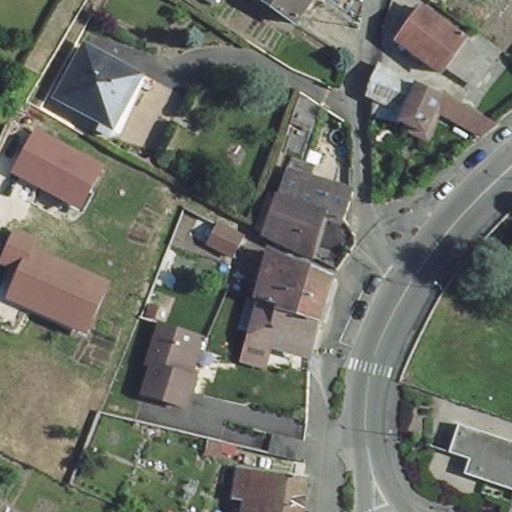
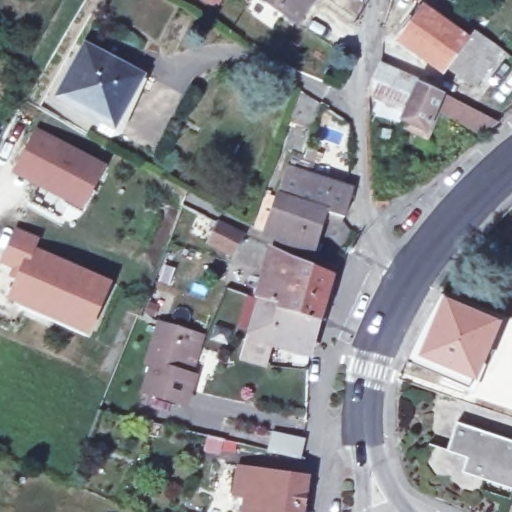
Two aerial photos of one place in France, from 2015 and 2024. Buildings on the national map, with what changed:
unchanged [(204,0),(210,0),(209,3),(204,0)]
unchanged [(264,0),(310,0),(294,21),(264,0)]
unchanged [(470,81),(453,68),(447,77),(402,44),(426,10),(471,44),(488,56),(470,81)]
unchanged [(137,76),(112,125),(58,96),(83,46),(137,76)]
unchanged [(435,114),(424,135),(400,122),(404,114),(368,97),(381,69),(417,86),(442,99),(435,114)]
unchanged [(293,109),(296,98),(297,93),(314,104),(307,127),(290,121),(293,109)]
unchanged [(495,120),(499,121),(484,133),(458,120),(466,105),(495,120)]
unchanged [(31,140),(98,173),(78,213),(33,191),(11,180),(15,171),(31,140)]
unchanged [(306,167),(304,177),(350,191),(344,219),(341,216),(322,212),(309,255),(258,235),(268,201),(276,202),(283,171),(286,161),(306,167)]
unchanged [(202,241),(190,235),(199,217),(211,223),(238,236),(229,255),(202,241)]
unchanged [(13,240),(34,249),(30,258),(107,290),(108,290),(87,338),(9,306),(20,278),(1,270),(13,240)]
unchanged [(302,267),(331,276),(319,319),(310,349),(273,338),(266,360),(242,356),(259,300),(273,254),(302,267)]
new [(409,361),(418,350),(445,290),(507,315),(480,377),(473,388),(409,361)]
unchanged [(188,373),(179,403),(137,390),(147,363),(141,362),(152,333),(156,321),(196,335),(192,346),(183,370),(188,373)]
unchanged [(462,463),(467,450),(448,443),(459,414),(512,434),(512,482),(462,463)]
unchanged [(272,433),(303,438),(299,456),(268,450),(272,433)]
unchanged [(255,502),(252,502),(244,500),(250,466),(255,466),(268,468),(311,475),(317,476),(315,488),(311,512),(254,512),(255,502)]

